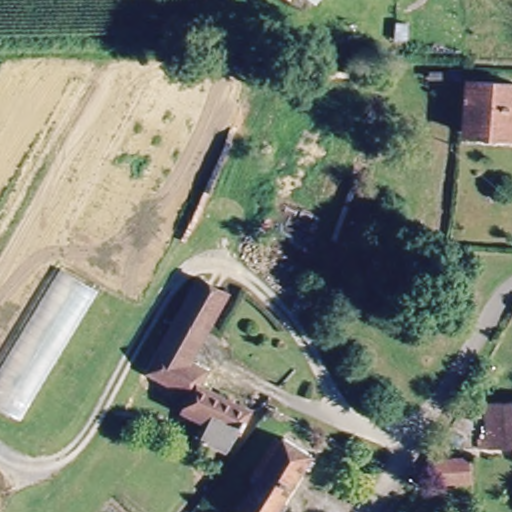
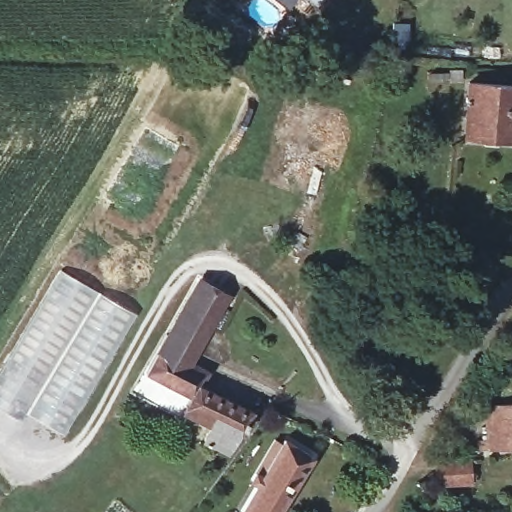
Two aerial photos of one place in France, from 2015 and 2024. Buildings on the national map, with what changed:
unchanged [(317,1),(315,0),(317,0),(317,1)]
unchanged [(512,137),(466,134),(467,80),(512,83),(512,137)]
unchanged [(61,269),(101,291),(23,422),(0,409),(0,372),(61,269)]
unchanged [(214,418),(189,405),(192,398),(147,375),(202,278),(227,294),(215,320),(191,356),(207,367),(201,382),(252,407),(243,432),(238,430),(231,450),(203,438),(214,418)]
new [(64,435),(27,415),(100,292),(136,313),(64,435)]
unchanged [(512,451),(491,452),(487,412),(512,409),(512,451)]
unchanged [(275,512),(246,512),(239,507),(285,436),(312,454),(275,512)]
unchanged [(470,465),(471,487),(441,488),(441,467),(470,465)]

